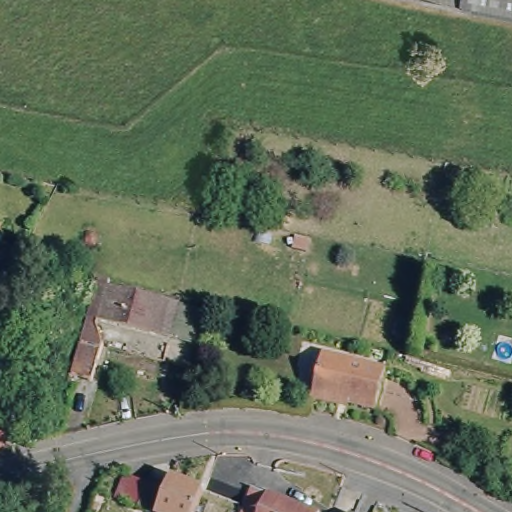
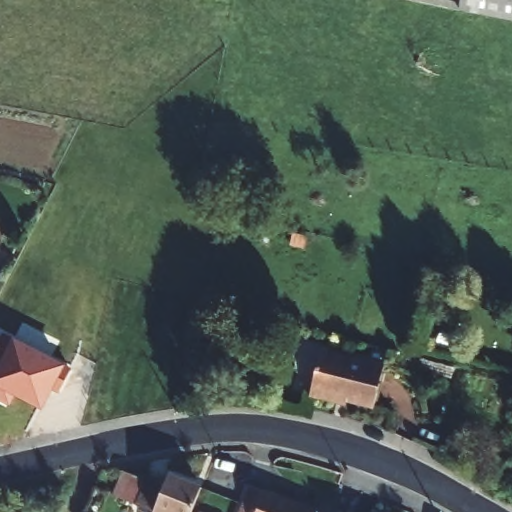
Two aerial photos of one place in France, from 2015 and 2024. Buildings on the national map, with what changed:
unchanged [(512,12),(446,0),(512,0),(512,12)]
unchanged [(183,299),(171,340),(105,321),(118,280),(183,299)]
demolished [(100,325),(105,344),(95,380),(75,375),(78,363),(91,317),(102,320),(100,325)]
new [(9,406),(0,401),(0,365),(8,349),(0,344),(0,338),(3,331),(68,364),(43,411),(14,396),(9,406)]
unchanged [(341,392),(339,396),(314,389),(326,347),(389,363),(379,402),(341,392)]
demolished [(0,434),(0,406),(10,404),(16,430),(0,434)]
unchanged [(163,512),(167,502),(149,495),(163,467),(180,473),(183,466),(214,478),(201,512),(163,512)]
unchanged [(314,505),(311,512),(235,512),(248,480),(314,505)]
unchanged [(369,512),(352,512),(355,505),(369,512)]

